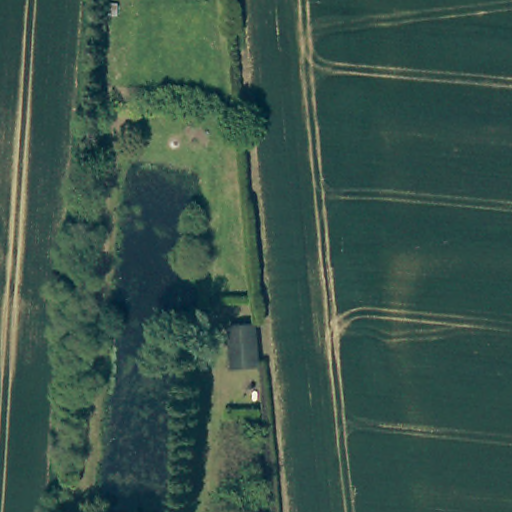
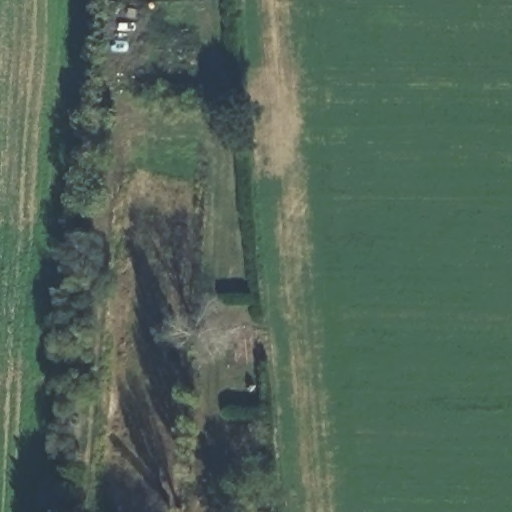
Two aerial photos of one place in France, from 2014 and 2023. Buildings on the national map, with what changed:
unchanged [(225,328),(249,328),(252,368),(228,370),(225,328)]

